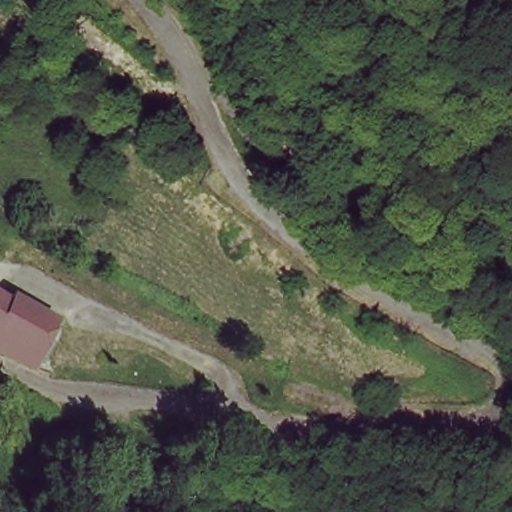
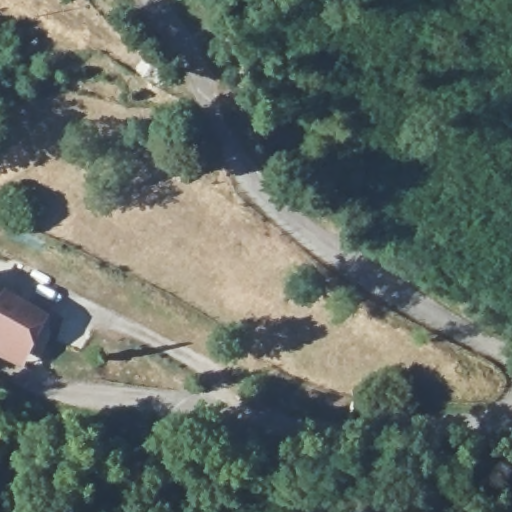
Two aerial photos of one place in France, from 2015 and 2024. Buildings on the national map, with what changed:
unchanged [(48,317),(31,353),(0,337),(0,300),(5,295),(48,317)]
unchanged [(22,372),(0,362),(0,337),(31,353),(22,372)]

